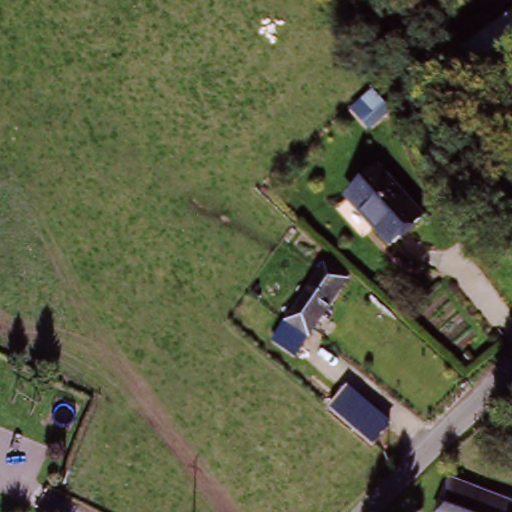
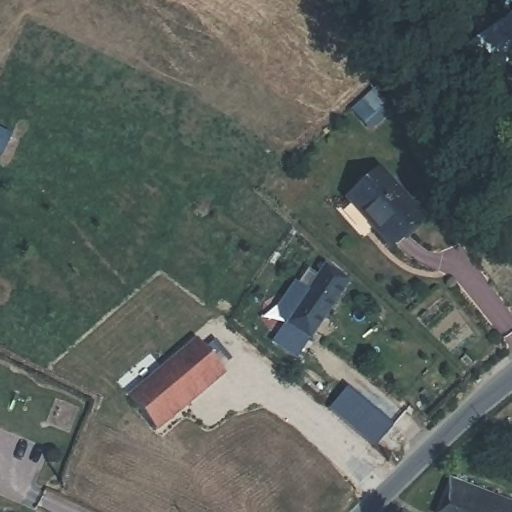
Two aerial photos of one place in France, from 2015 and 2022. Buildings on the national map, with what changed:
unchanged [(350,107),(367,93),(381,111),(364,125),(350,107)]
unchanged [(345,200),(375,176),(413,223),(385,247),(345,200)]
unchanged [(296,359),(273,344),(321,270),(345,286),(296,359)]
new [(210,362),(222,352),(231,364),(220,374),(223,379),(155,435),(127,401),(196,345),(210,362)]
unchanged [(375,447),(328,408),(349,386),(393,426),(375,447)]
unchanged [(512,509),(512,512),(440,512),(453,484),(512,509)]

